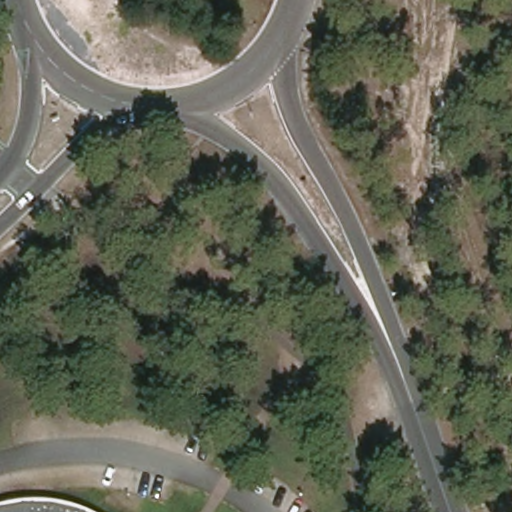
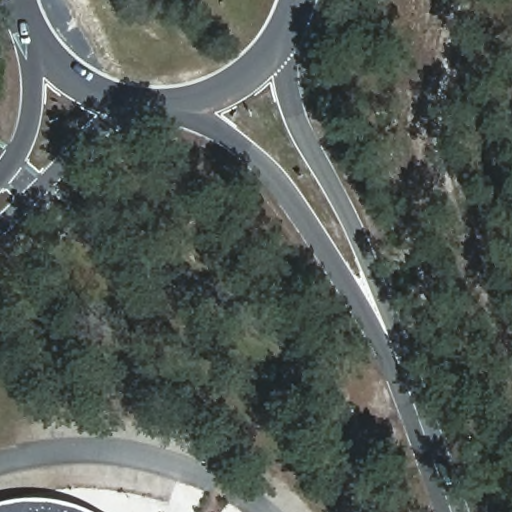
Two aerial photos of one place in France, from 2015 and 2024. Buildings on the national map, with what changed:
unchanged [(0,505),(23,502),(46,501),(64,502),(77,506),(89,511),(91,512),(0,512),(0,505)]

